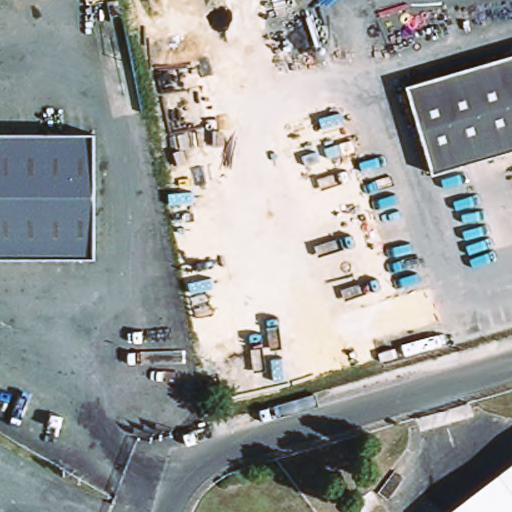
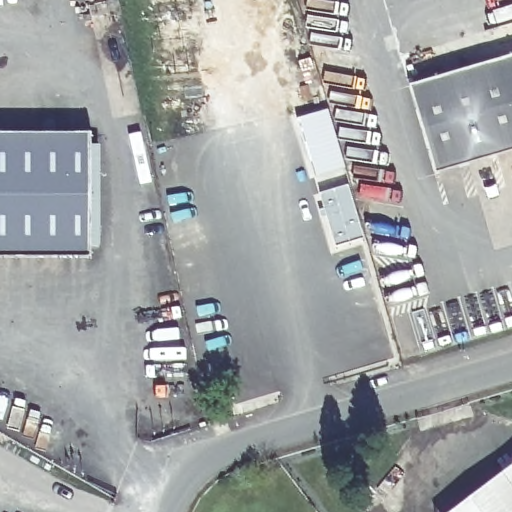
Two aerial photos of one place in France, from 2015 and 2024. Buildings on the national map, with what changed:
unchanged [(448,138),(432,81),(512,58),(512,154),(457,170),(448,138)]
unchanged [(448,138),(457,170),(438,175),(412,87),(432,81),(448,138)]
new [(330,111),(347,169),(318,177),(301,119),(330,111)]
unchanged [(90,133),(90,257),(0,257),(0,133),(90,133)]
new [(351,185),(367,239),(339,247),(323,194),(351,185)]
unchanged [(225,408),(214,412),(212,403),(224,399),(225,408)]
unchanged [(512,512),(453,512),(512,467),(512,512)]

